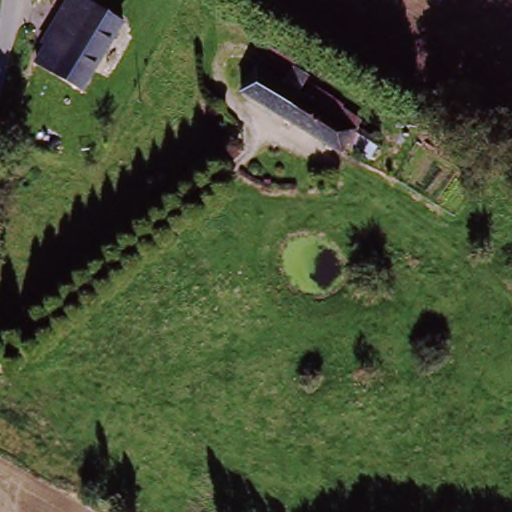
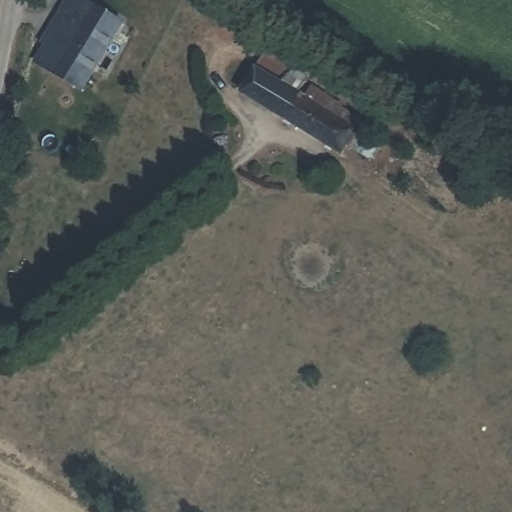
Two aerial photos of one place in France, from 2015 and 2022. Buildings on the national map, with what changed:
unchanged [(79,86),(52,70),(63,53),(42,40),(56,17),(78,30),(95,2),(120,19),(79,86)]
unchanged [(367,160),(346,147),(340,155),(240,94),(255,69),(263,57),(292,76),(285,87),(376,143),(367,160)]

